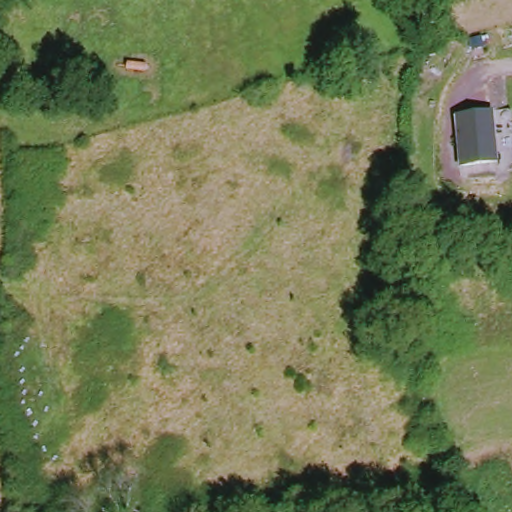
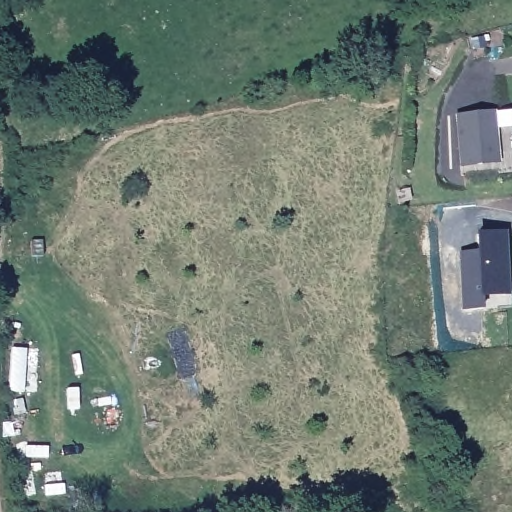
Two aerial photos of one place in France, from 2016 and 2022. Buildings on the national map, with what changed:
unchanged [(459,166),(454,115),(492,111),(497,162),(459,166)]
new [(481,250),(480,237),(505,236),(509,296),(484,297),(484,311),(467,312),(464,252),(481,250)]

